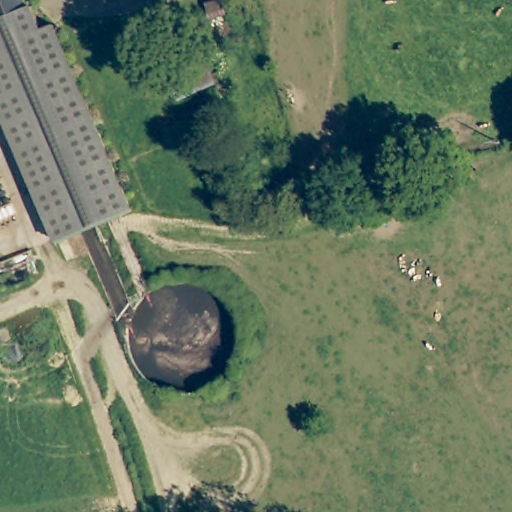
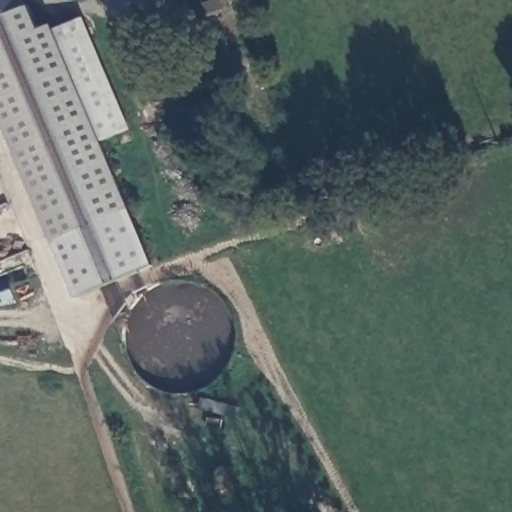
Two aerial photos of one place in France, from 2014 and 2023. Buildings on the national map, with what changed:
unchanged [(1,25),(0,24),(0,0),(29,0),(34,12),(1,25)]
unchanged [(225,0),(227,0),(232,12),(212,20),(208,7),(225,0)]
unchanged [(34,12),(38,10),(40,16),(48,36),(60,31),(112,159),(137,218),(89,238),(70,245),(60,249),(0,102),(0,26),(1,25),(34,12)]
new [(134,131),(106,142),(60,31),(86,20),(134,131)]
new [(80,297),(60,249),(70,245),(89,238),(137,218),(157,265),(80,297)]

